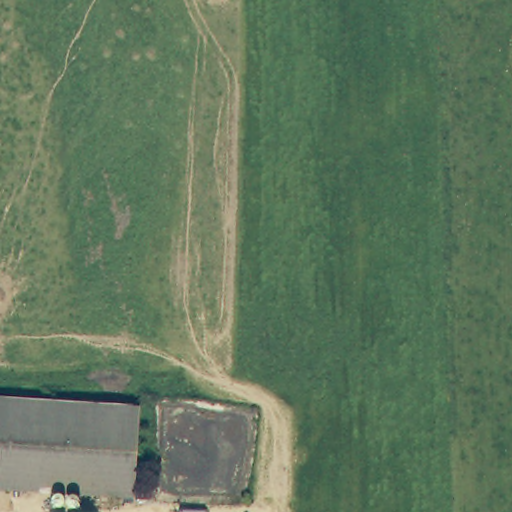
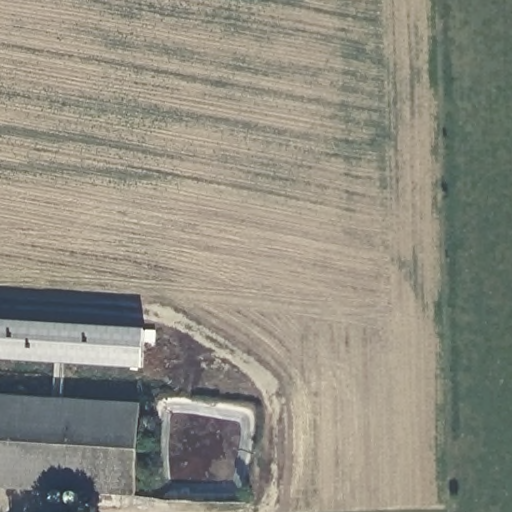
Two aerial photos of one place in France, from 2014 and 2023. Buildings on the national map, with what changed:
new [(143,370),(0,361),(0,321),(144,331),(143,370)]
unchanged [(139,406),(133,493),(0,484),(0,396),(139,406)]

